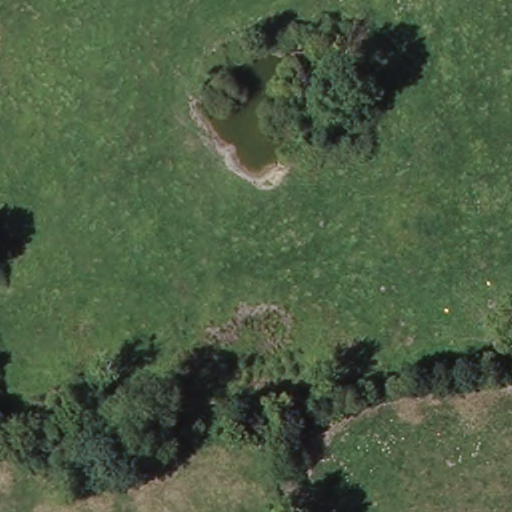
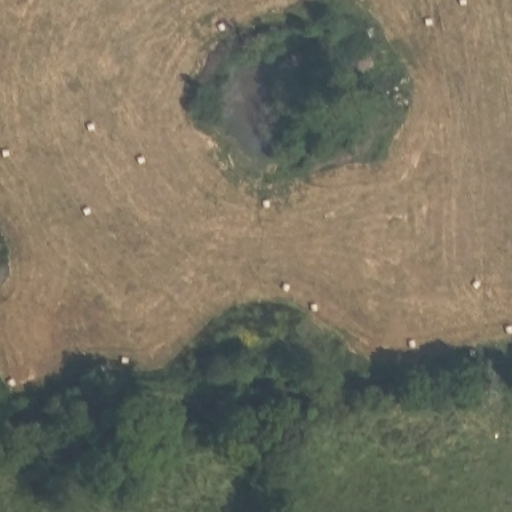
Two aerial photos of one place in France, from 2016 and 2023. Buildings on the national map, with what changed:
[]

